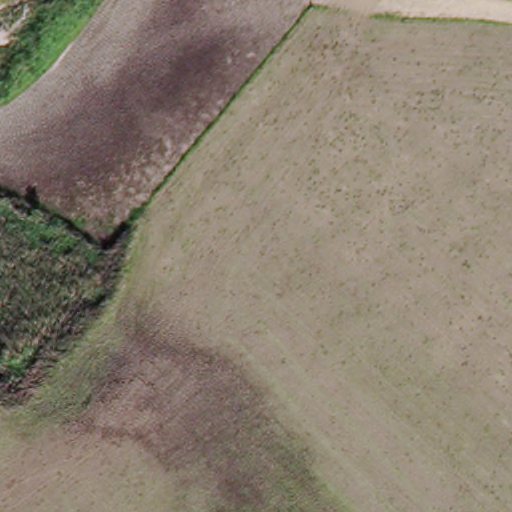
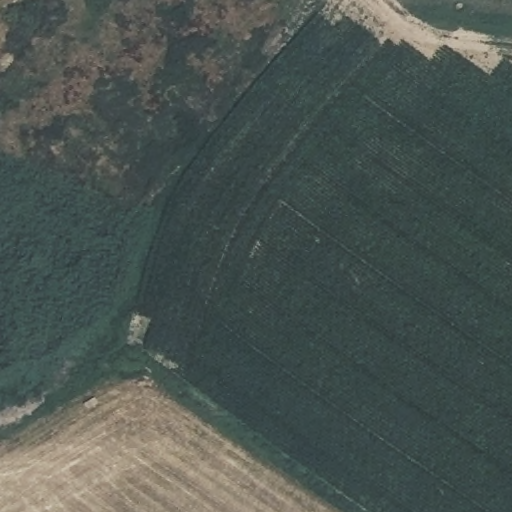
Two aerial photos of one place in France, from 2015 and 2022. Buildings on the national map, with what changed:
[]

